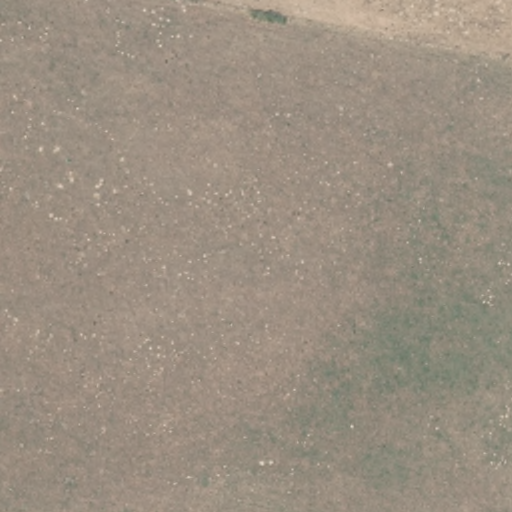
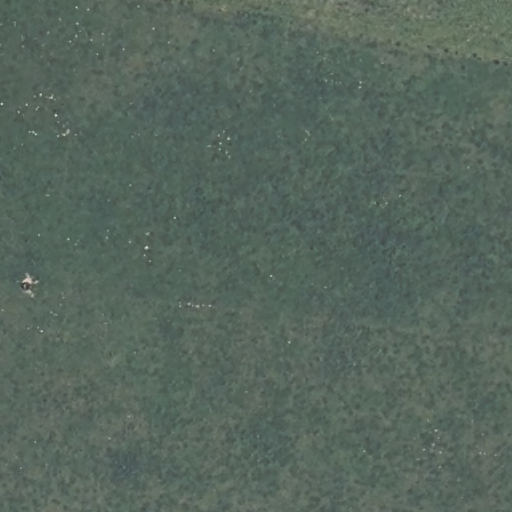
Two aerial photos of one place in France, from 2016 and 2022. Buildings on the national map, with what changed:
[]

